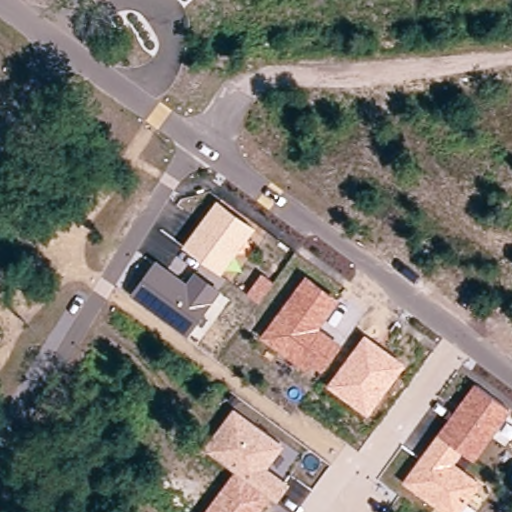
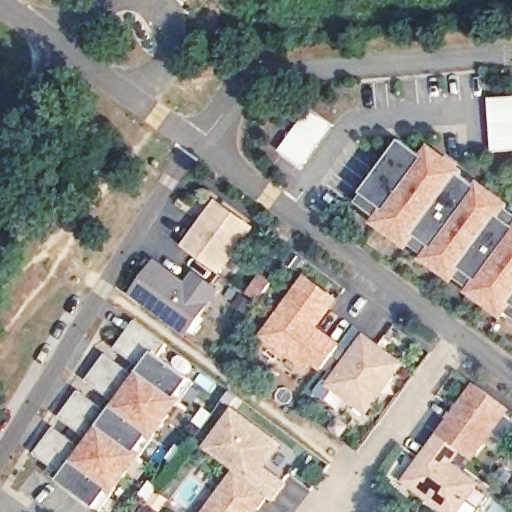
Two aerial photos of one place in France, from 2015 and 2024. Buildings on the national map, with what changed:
new [(512,101),(512,107),(512,154),(487,156),(484,103),(512,101)]
new [(303,114),(327,131),(295,174),(272,158),(303,114)]
new [(502,320),(500,324),(482,310),(467,300),(469,298),(450,284),(449,287),(422,267),(423,264),(404,252),(403,254),(389,243),(371,230),(374,227),(352,210),(358,202),(356,200),(395,146),(419,164),(425,155),(439,165),(435,172),(452,184),(450,186),(469,199),(470,197),(497,216),(496,218),(512,230),(512,327),(502,320)]
unchanged [(256,229),(221,275),(183,248),(217,200),(256,229)]
unchanged [(185,282),(195,271),(222,290),(188,338),(131,295),(156,259),(185,282)]
unchanged [(340,299),(320,328),(343,344),(323,372),(314,367),(311,373),(260,338),(307,275),(340,299)]
new [(37,463),(56,437),(87,459),(94,450),(61,427),(81,400),(111,422),(115,416),(118,418),(121,414),(88,389),(107,364),(140,387),(143,383),(140,382),(144,377),(116,358),(136,329),(169,353),(160,365),(192,388),(179,407),(181,409),(154,445),(152,444),(139,462),(141,464),(115,499),(113,498),(102,512),(92,512),(61,490),(54,485),(59,479),(37,463)]
unchanged [(407,364),(369,418),(328,387),(364,334),(407,364)]
unchanged [(512,410),(512,411),(475,462),(462,453),(456,463),(482,483),(462,512),(441,512),(402,483),(476,383),(512,410)]
unchanged [(284,446),(268,468),(291,484),(279,503),(271,497),(260,512),(204,512),(235,471),(203,449),(234,407),(284,446)]

